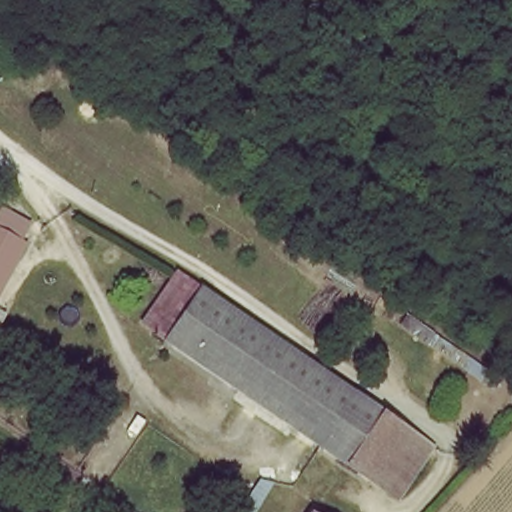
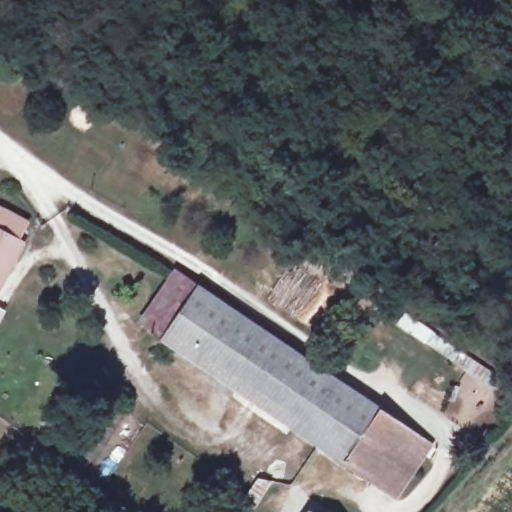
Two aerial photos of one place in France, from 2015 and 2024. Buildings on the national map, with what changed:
unchanged [(7,260),(0,271),(0,212),(26,228),(18,241),(26,246),(13,265),(7,260)]
unchanged [(148,321),(181,275),(196,285),(164,332),(148,321)]
unchanged [(311,434),(164,332),(196,285),(342,386),(311,434)]
unchanged [(366,473),(311,434),(342,386),(398,424),(366,473)]
unchanged [(426,444),(395,493),(366,473),(398,424),(426,444)]

